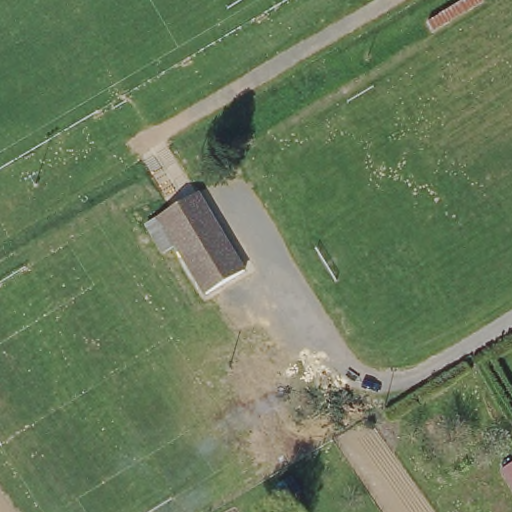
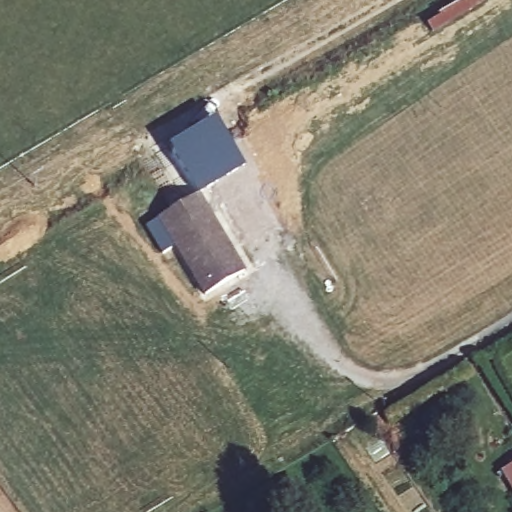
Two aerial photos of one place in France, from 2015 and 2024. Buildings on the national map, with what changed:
unchanged [(479,2),(430,29),(422,16),(449,0),(478,0),(479,2)]
new [(245,166),(198,193),(170,145),(217,117),(245,166)]
unchanged [(197,289),(160,230),(155,223),(196,198),(202,206),(237,264),(197,289)]
unchanged [(512,468),(512,491),(501,474),(512,468)]

